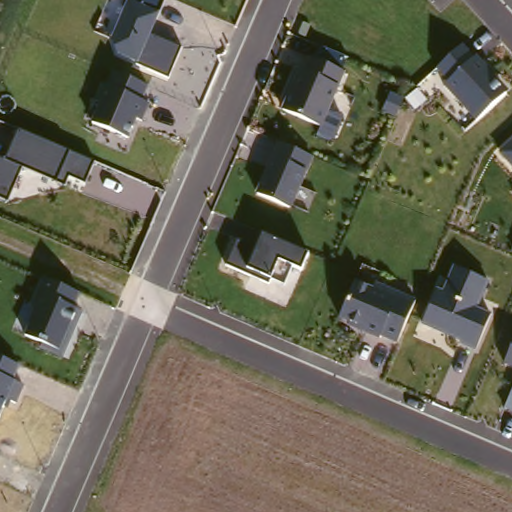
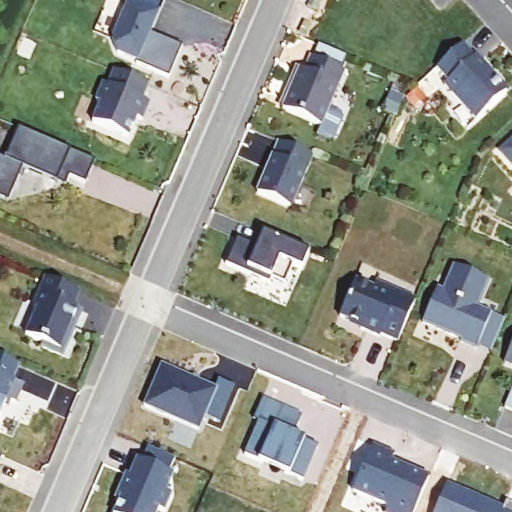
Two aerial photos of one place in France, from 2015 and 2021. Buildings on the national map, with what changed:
unchanged [(116,56),(112,38),(130,0),(166,0),(152,35),(182,49),(170,79),(116,56)]
unchanged [(446,84),(448,81),(437,68),(462,45),(474,56),(478,53),(508,91),(478,120),(446,84)]
unchanged [(296,66),(301,70),(307,54),(343,67),(320,127),(280,109),(296,66)]
unchanged [(115,71),(149,86),(144,100),(150,105),(143,122),(137,120),(129,139),(93,124),(115,71)]
unchanged [(7,160),(20,130),(95,162),(86,184),(69,177),(65,185),(22,168),(7,201),(0,198),(0,157),(7,160)]
unchanged [(313,150),(290,210),(254,193),(277,135),(313,150)]
unchanged [(512,140),(512,166),(499,151),(512,140)]
unchanged [(285,284),(272,279),(270,285),(226,266),(239,238),(259,246),(265,232),(310,251),(302,268),(292,265),(285,284)]
unchanged [(460,343),(461,340),(422,323),(438,287),(443,290),(453,266),(489,281),(477,308),(492,315),(476,350),(460,343)]
unchanged [(37,305),(32,303),(45,275),(81,293),(75,307),(84,312),(63,359),(39,350),(41,342),(25,335),(37,305)]
unchanged [(358,280),(373,287),(376,282),(415,300),(395,344),(338,317),(358,280)]
unchanged [(512,367),(503,363),(512,344),(512,367)]
unchanged [(20,365),(15,380),(25,385),(17,404),(7,401),(0,417),(0,356),(20,365)]
new [(215,390),(219,380),(234,388),(220,422),(205,415),(199,431),(145,408),(161,366),(215,390)]
unchanged [(512,387),(512,411),(503,407),(512,387)]
new [(302,416),(293,435),(317,445),(303,480),(290,475),(258,462),(244,457),(258,422),(255,421),(263,398),(302,416)]
new [(114,500),(125,473),(132,476),(139,460),(146,448),(175,461),(168,475),(173,477),(167,492),(172,495),(166,512),(163,512),(161,510),(160,512),(115,512),(119,502),(114,500)]
unchanged [(1,455),(0,458),(0,455),(1,455)]
new [(503,505),(506,499),(512,501),(512,512),(433,512),(446,481),(503,505)]

